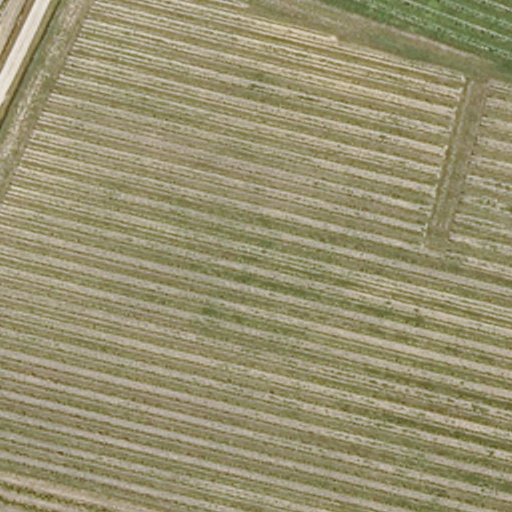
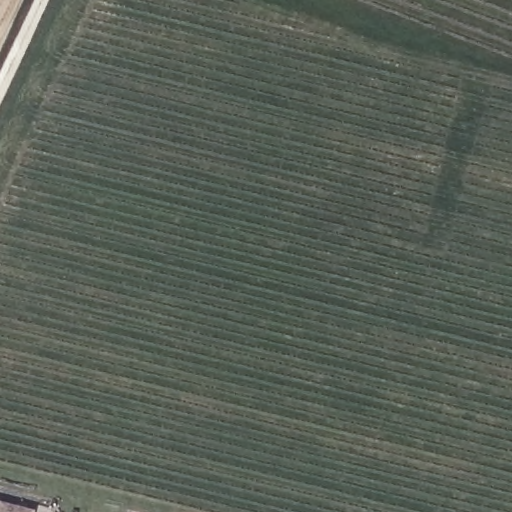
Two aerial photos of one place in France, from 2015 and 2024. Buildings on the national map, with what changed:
new [(38,512),(0,512),(0,501),(38,510),(38,512)]

